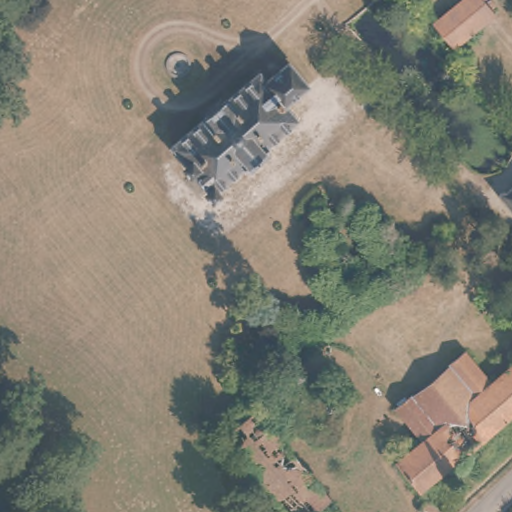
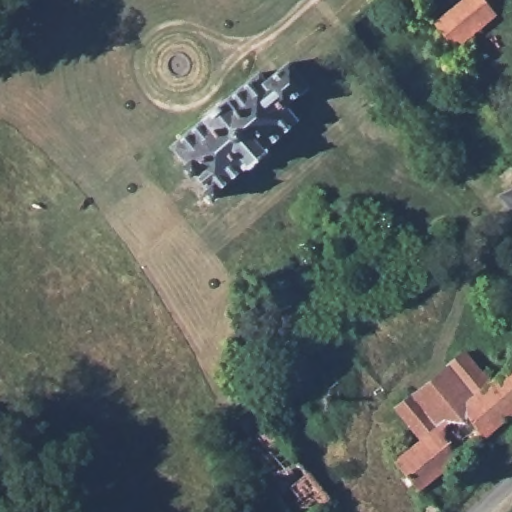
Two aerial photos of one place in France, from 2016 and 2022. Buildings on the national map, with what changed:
unchanged [(424,18),(449,0),(493,0),(502,14),(450,49),(424,18)]
unchanged [(312,86),(291,105),(302,117),(218,198),(178,146),(259,71),(270,81),(291,62),(312,86)]
unchanged [(512,204),(505,196),(512,190),(512,204)]
unchanged [(512,414),(427,486),(404,458),(427,436),(408,413),(470,360),(491,383),(512,366),(512,414)]
unchanged [(329,406),(340,418),(326,430),(316,417),(329,406)]
unchanged [(413,498),(427,486),(447,512),(424,512),(413,498)]

